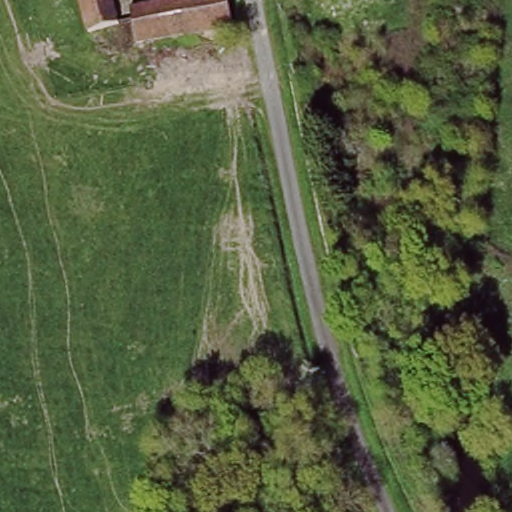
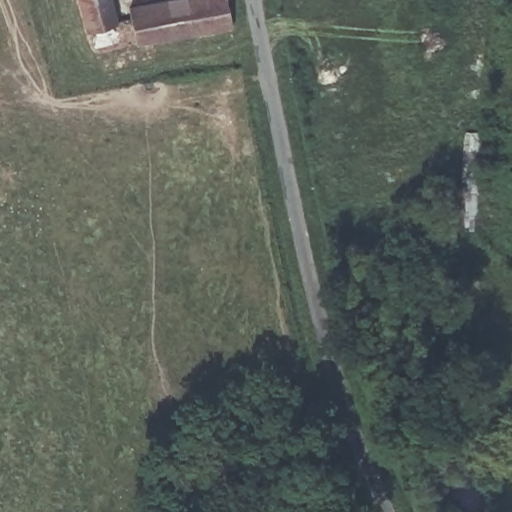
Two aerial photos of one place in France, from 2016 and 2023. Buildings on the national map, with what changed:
unchanged [(116,20),(87,25),(80,0),(112,0),(116,20)]
unchanged [(229,22),(140,41),(134,14),(187,0),(227,0),(229,22)]

